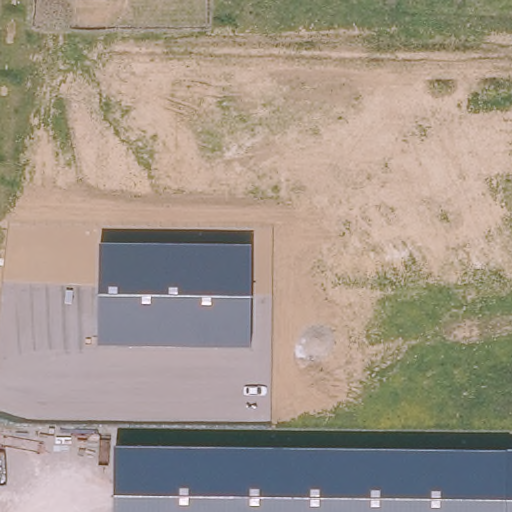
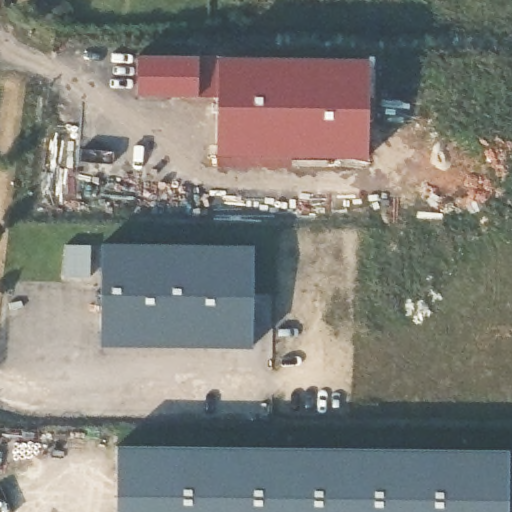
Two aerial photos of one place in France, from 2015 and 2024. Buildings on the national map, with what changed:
new [(197,58),(196,97),(136,96),(136,57),(197,58)]
new [(215,157),(217,58),(367,60),(365,159),(215,157)]
unchanged [(252,247),(250,347),(97,347),(100,243),(252,247)]
unchanged [(512,512),(115,512),(115,446),(512,452),(512,512)]

